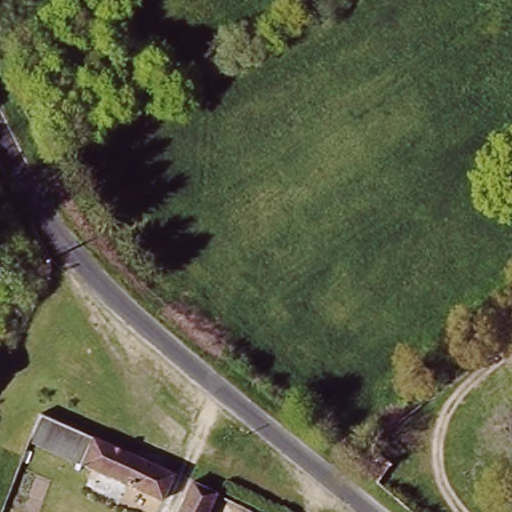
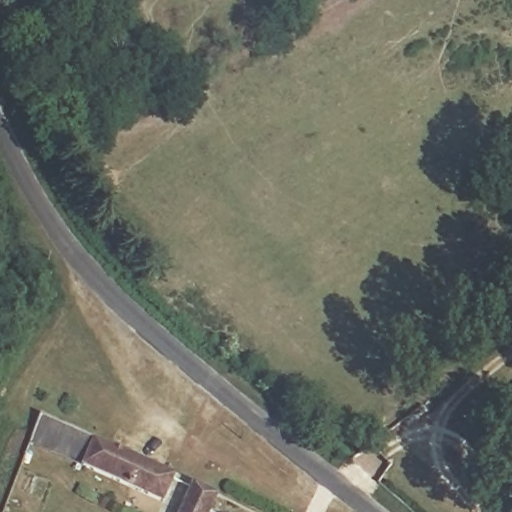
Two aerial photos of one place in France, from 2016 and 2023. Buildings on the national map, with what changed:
unchanged [(208,512),(160,512),(165,500),(31,444),(40,415),(215,494),(208,512)]

